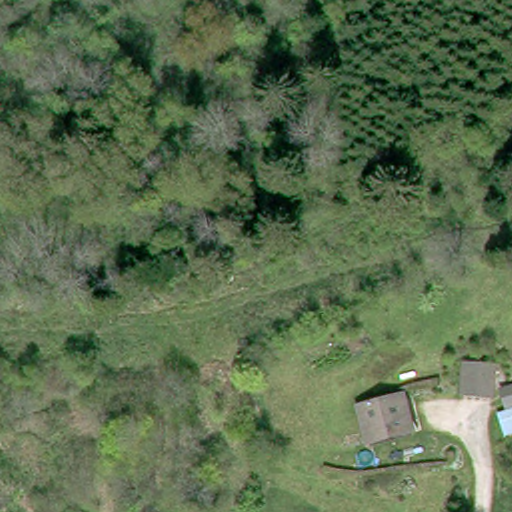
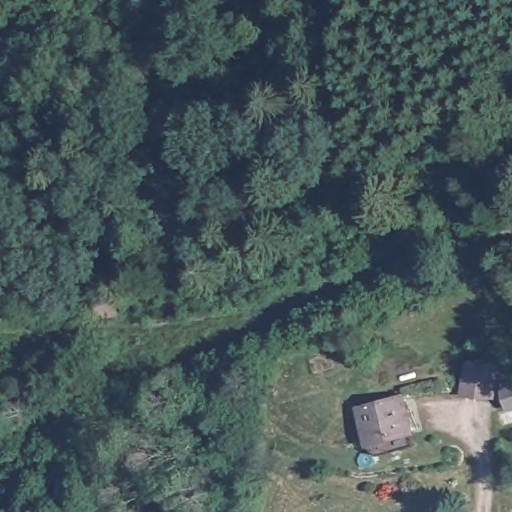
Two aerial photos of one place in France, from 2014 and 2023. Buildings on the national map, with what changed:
unchanged [(457,396),(457,364),(485,364),(487,396),(457,396)]
unchanged [(501,391),(512,387),(512,405),(507,407),(501,391)]
unchanged [(413,433),(372,445),(364,414),(404,402),(413,433)]

